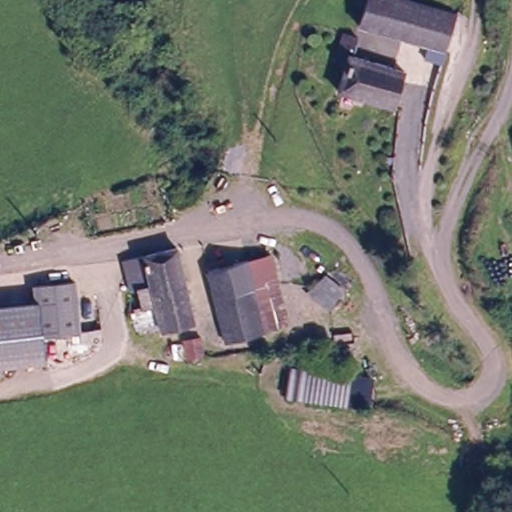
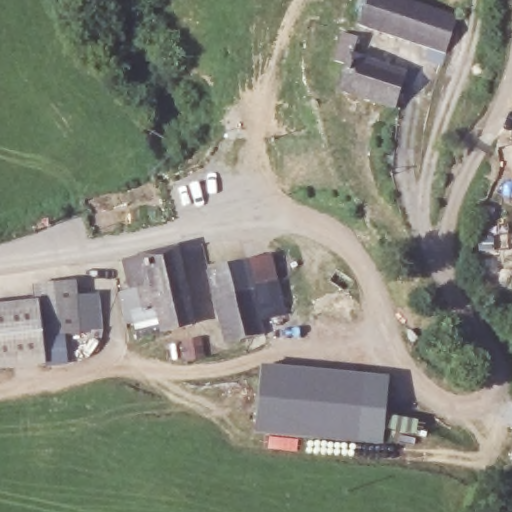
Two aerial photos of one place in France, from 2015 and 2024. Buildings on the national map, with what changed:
unchanged [(441,66),(427,60),(433,41),(360,18),(366,0),(431,0),(461,9),(441,66)]
unchanged [(337,85),(345,64),(332,58),(340,28),(352,33),(356,35),(352,51),(408,71),(395,105),(337,85)]
unchanged [(188,329),(165,334),(159,308),(145,311),(141,291),(133,294),(126,266),(147,258),(179,247),(199,326),(188,329)]
unchanged [(266,327),(230,338),(211,264),(241,254),(245,253),(268,248),(277,279),(291,321),(266,327)]
unchanged [(31,284),(76,278),(81,334),(43,338),(38,300),(34,301),(31,284)]
unchanged [(0,368),(0,304),(34,301),(38,300),(43,338),(46,363),(0,368)]
unchanged [(189,358),(185,341),(192,340),(206,337),(210,351),(205,353),(189,358)]
new [(262,364),(389,376),(383,444),(255,432),(262,364)]

